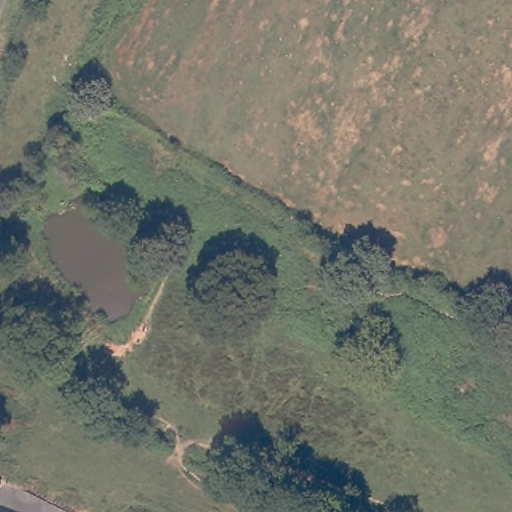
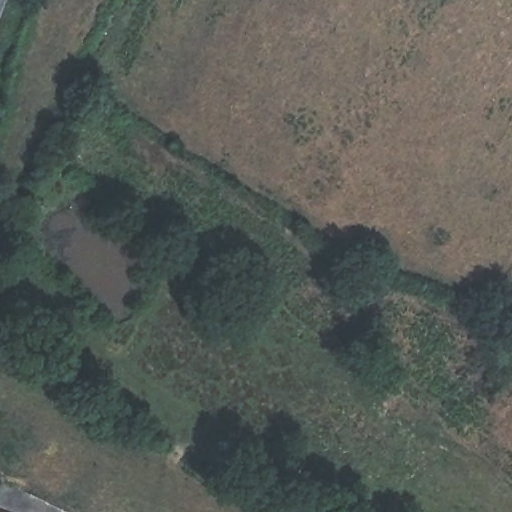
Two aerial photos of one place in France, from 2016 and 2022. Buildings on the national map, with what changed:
unchanged [(0,512),(0,509),(10,512),(0,512)]

